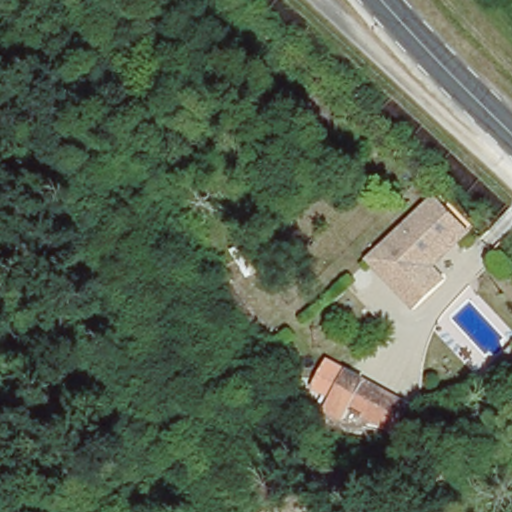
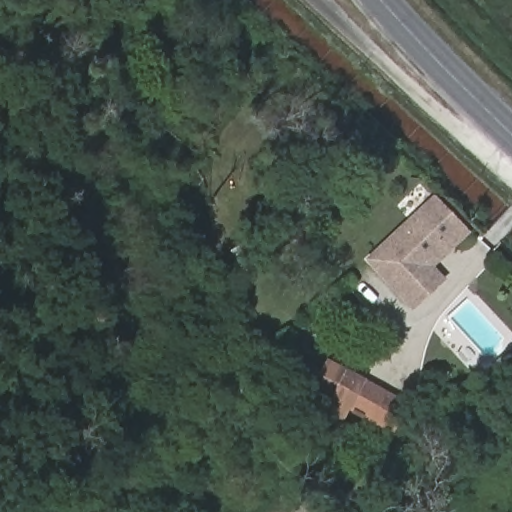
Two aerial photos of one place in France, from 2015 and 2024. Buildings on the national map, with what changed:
unchanged [(435,193),(472,232),(436,265),(448,278),(414,309),(366,259),(435,193)]
unchanged [(506,383),(490,369),(512,346),(512,375),(506,383)]
unchanged [(403,437),(332,423),(315,407),(335,384),(364,408),(407,415),(403,437)]

